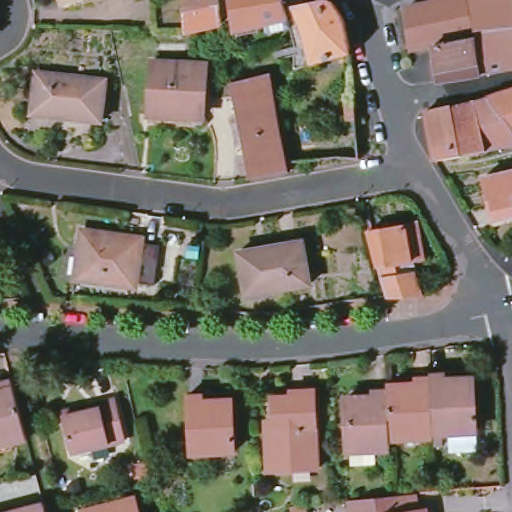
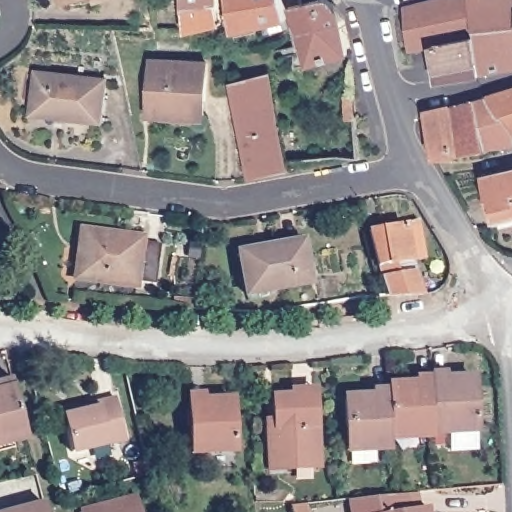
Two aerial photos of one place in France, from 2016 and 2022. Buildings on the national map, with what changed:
unchanged [(225,15),(227,25),(220,26),(192,29),(188,0),(224,0),(225,15)]
unchanged [(233,25),(235,15),(235,7),(237,0),(285,0),(287,32),(232,34),(233,25)]
unchanged [(332,3),(337,8),(345,20),(348,38),(350,51),(310,61),(299,7),(299,0),(328,0),(332,3)]
unchanged [(414,53),(407,17),(406,13),(455,0),(467,0),(475,42),(432,50),(414,53)]
unchanged [(512,73),(480,79),(475,42),(467,0),(512,0),(512,73)]
unchanged [(440,84),(432,50),(475,42),(480,79),(440,84)]
unchanged [(150,116),(153,61),(210,64),(206,116),(176,114),(175,117),(150,116)]
unchanged [(62,117),(63,113),(31,110),(35,70),(105,77),(101,121),(62,117)]
unchanged [(228,81),(263,73),(277,124),(243,133),(228,81)]
unchanged [(512,88),(512,142),(502,145),(483,149),(463,153),(450,105),(470,100),(487,95),(512,88)]
unchanged [(423,112),(450,105),(463,153),(436,161),(423,112)]
unchanged [(243,133),(277,124),(287,161),(291,172),(257,181),(256,180),(243,133)]
unchanged [(512,174),(512,221),(498,225),(487,180),(512,174)]
unchanged [(367,230),(407,223),(420,220),(427,258),(415,261),(377,268),(367,230)]
unchanged [(72,279),(78,231),(139,240),(132,288),(72,279)]
unchanged [(237,253),(301,241),(308,286),(245,298),(237,253)]
unchanged [(392,303),(382,277),(417,269),(425,294),(392,303)]
unchanged [(431,382),(430,376),(476,374),(479,428),(433,431),(431,382)]
unchanged [(11,380),(13,387),(25,431),(0,438),(0,382),(11,380)]
unchanged [(410,383),(431,382),(433,431),(433,434),(412,436),(410,383)]
unchanged [(389,393),(388,385),(410,383),(412,436),(392,438),(389,393)]
unchanged [(392,438),(392,447),(346,450),(343,396),(389,393),(392,438)]
unchanged [(287,458),(270,459),(269,427),(277,426),(277,397),(317,395),(320,469),(288,471),(287,458)]
unchanged [(187,398),(231,397),(233,449),(189,451),(187,398)]
unchanged [(113,398),(122,438),(120,439),(82,448),(70,451),(60,415),(65,414),(97,406),(97,401),(110,399),(113,398)]
unchanged [(401,490),(402,490),(410,489),(412,489),(413,503),(426,502),(427,512),(349,512),(346,495),(401,490)]
unchanged [(20,507),(43,502),(46,512),(0,512),(4,511),(20,507)]
unchanged [(139,503),(141,512),(102,512),(135,504),(139,503)]

